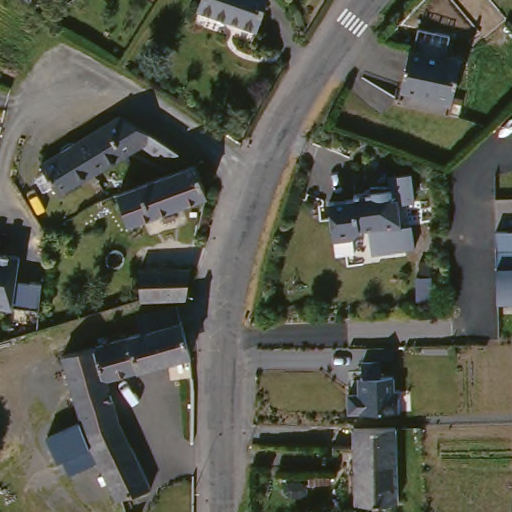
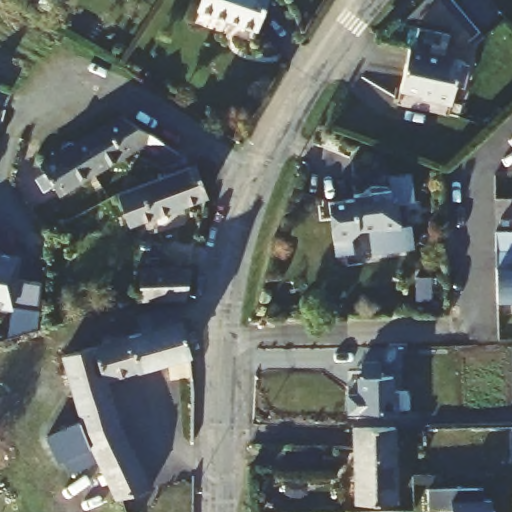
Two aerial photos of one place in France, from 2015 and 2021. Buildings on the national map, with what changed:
unchanged [(209,0),(275,0),(266,25),(207,4),(209,0)]
unchanged [(473,56),(463,99),(445,95),(446,93),(414,85),(424,45),(473,56)]
unchanged [(162,131),(188,149),(172,157),(150,141),(67,192),(52,159),(71,147),(72,142),(78,138),(83,139),(129,110),(162,131)]
unchanged [(217,190),(137,220),(126,190),(206,159),(217,190)]
unchanged [(386,185),(394,186),(397,187),(399,200),(403,199),(407,227),(388,230),(388,227),(368,230),(358,238),(340,241),(335,202),(358,199),(358,194),(374,192),(373,186),(379,185),(386,185)]
unchanged [(512,231),(512,302),(497,301),(493,232),(512,231)]
unchanged [(19,257),(16,281),(39,284),(36,310),(11,307),(10,313),(0,311),(0,254),(19,257)]
unchanged [(200,264),(196,294),(149,296),(148,266),(200,264)]
unchanged [(426,278),(427,300),(413,301),(411,279),(426,278)]
unchanged [(149,329),(145,312),(186,301),(191,317),(200,351),(115,375),(128,418),(105,424),(94,426),(72,351),(149,329)]
unchanged [(357,396),(357,377),(360,377),(360,362),(382,364),(381,376),(393,377),(393,393),(401,394),(401,412),(349,413),(348,396),(357,396)]
demolished [(1,410),(7,426),(0,429),(0,411),(1,410)]
unchanged [(105,424),(128,418),(144,452),(159,485),(145,490),(131,494),(125,496),(118,479),(112,482),(108,474),(114,471),(107,456),(94,426),(105,424)]
unchanged [(399,423),(401,498),(358,499),(356,423),(399,423)]
unchanged [(107,456),(77,471),(62,438),(94,426),(107,456)]
new [(490,500),(490,512),(452,512),(451,511),(429,512),(428,490),(482,489),(482,500),(490,500)]

